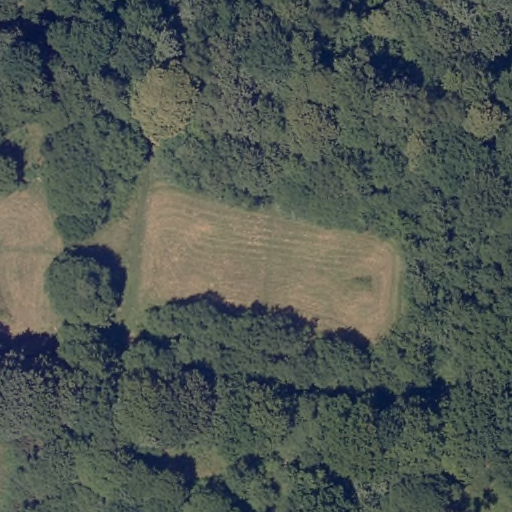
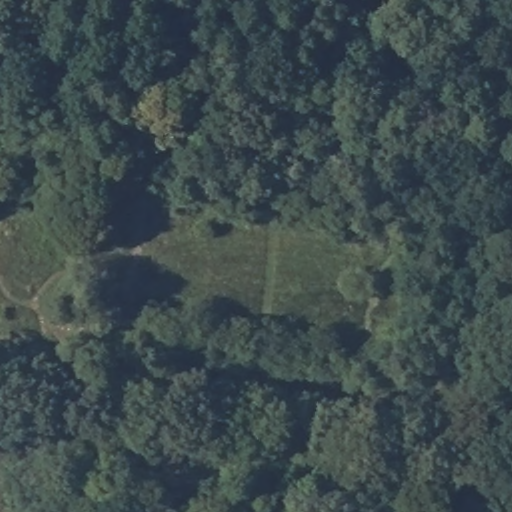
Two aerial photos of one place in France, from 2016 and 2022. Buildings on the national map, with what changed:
[]

